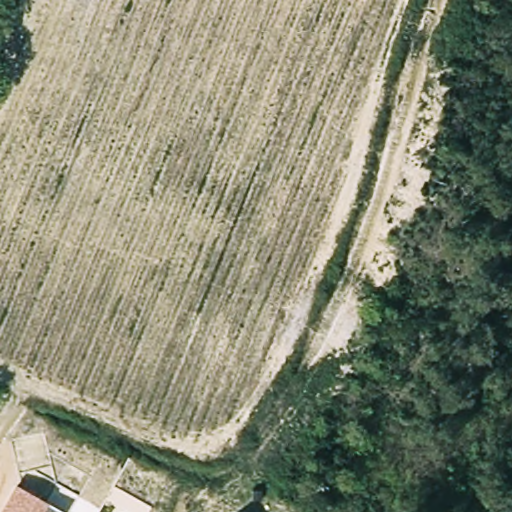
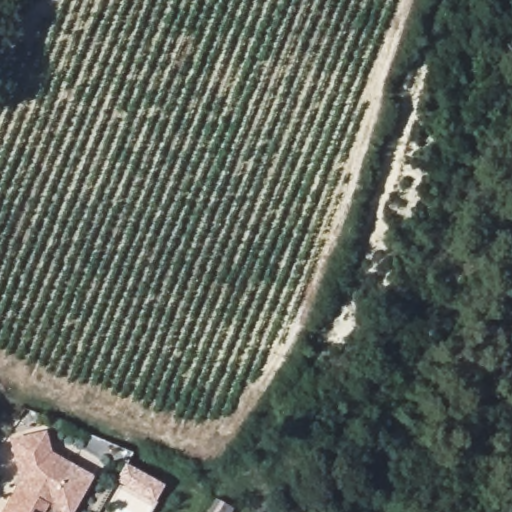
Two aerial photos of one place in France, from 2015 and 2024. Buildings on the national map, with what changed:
new [(9,440),(46,430),(52,452),(93,475),(73,512),(62,512),(16,487),(20,481),(9,440)]
unchanged [(1,512),(16,487),(62,512),(1,512)]

